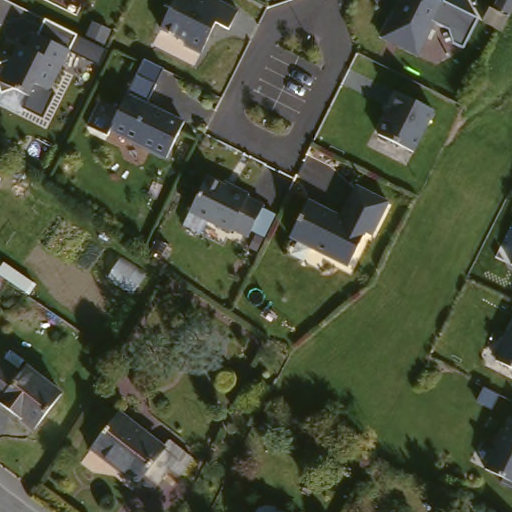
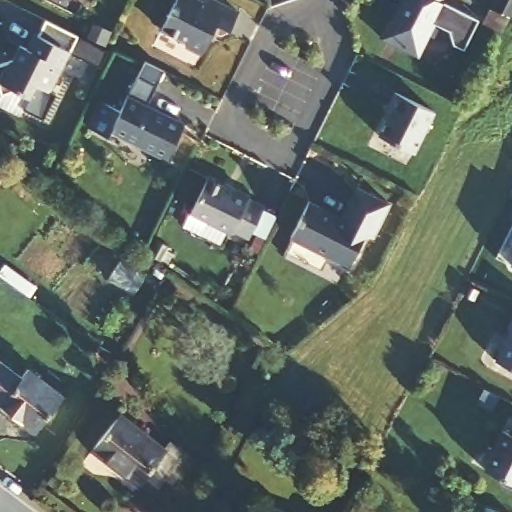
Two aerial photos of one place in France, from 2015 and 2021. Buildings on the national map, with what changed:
unchanged [(206,0),(212,0),(240,14),(231,33),(218,26),(202,56),(186,48),(185,42),(163,31),(179,0),(197,0),(204,3),(206,0)]
unchanged [(444,0),(448,2),(421,54),(386,36),(404,0),(445,0),(444,0)]
unchanged [(82,32),(54,88),(40,81),(33,93),(19,86),(6,91),(0,74),(0,62),(17,56),(24,41),(34,46),(49,16),(82,32)]
unchanged [(190,122),(172,156),(116,127),(113,133),(94,123),(107,97),(126,107),(143,73),(151,57),(171,67),(163,83),(153,103),(190,122)]
unchanged [(439,112),(418,153),(384,136),(398,109),(393,107),(401,93),(439,112)]
unchanged [(240,190),(256,198),(255,201),(271,209),(255,240),(239,232),(237,235),(197,215),(214,181),(239,193),(240,190)]
unchanged [(335,208),(334,210),(345,215),(361,183),(392,198),(375,232),(369,229),(352,262),(294,233),(312,196),(335,208)]
unchanged [(512,343),(512,370),(501,364),(512,343)]
unchanged [(31,363),(68,393),(38,428),(0,399),(0,350),(27,368),(31,363)]
unchanged [(290,415),(284,427),(263,418),(268,406),(290,415)]
unchanged [(173,432),(196,446),(185,465),(177,461),(160,486),(143,476),(140,479),(93,448),(117,412),(165,444),(173,432)]
unchanged [(507,474),(490,465),(501,442),(499,441),(507,425),(512,427),(512,481),(506,477),(507,474)]
unchanged [(279,512),(279,511),(280,512),(279,512)]

